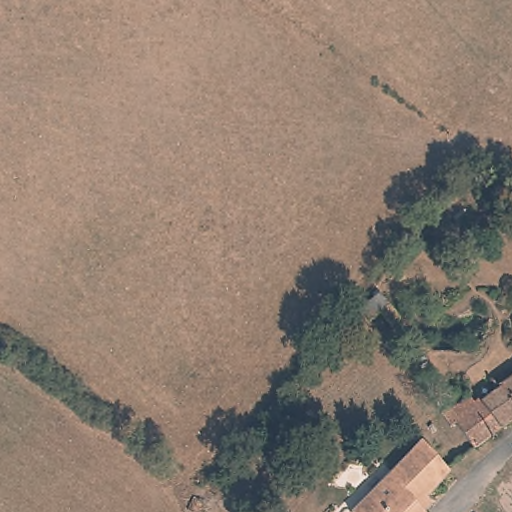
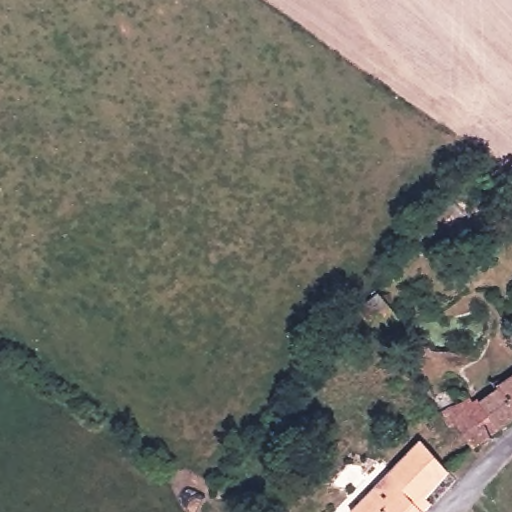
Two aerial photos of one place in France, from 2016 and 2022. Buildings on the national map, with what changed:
unchanged [(403,326),(394,333),(383,321),(373,328),(364,316),(384,301),(403,326)]
unchanged [(457,420),(448,409),(464,398),(470,394),(477,403),(498,389),(494,384),(510,372),(512,375),(512,417),(491,433),(476,445),(457,420)]
unchanged [(447,470),(417,502),(388,473),(422,438),(445,468),(447,470)]
unchanged [(352,510),(388,473),(417,502),(425,511),(424,512),(354,512),(352,510)]

